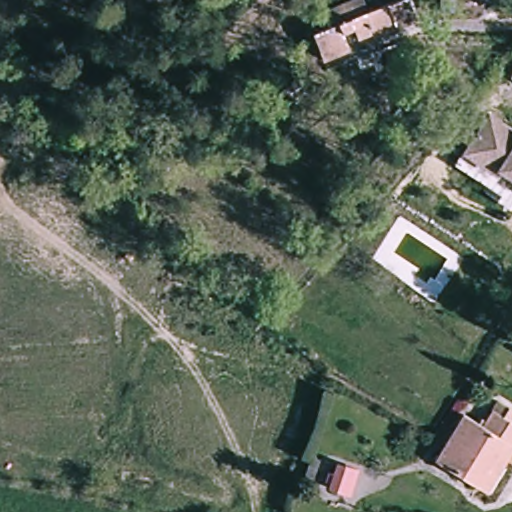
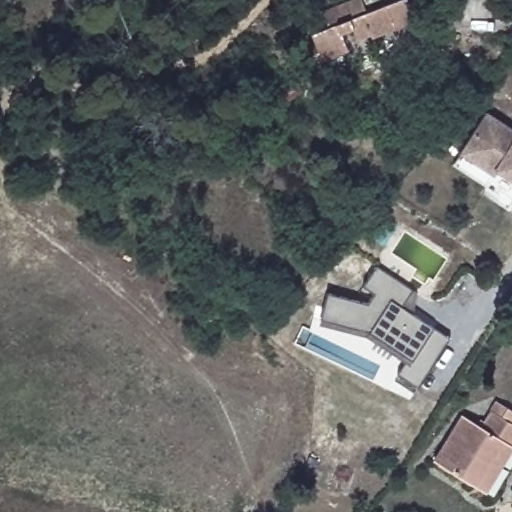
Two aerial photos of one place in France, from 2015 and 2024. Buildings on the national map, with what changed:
unchanged [(321,41),(313,28),(345,9),(353,22),(389,2),(405,29),(365,51),(362,47),(345,56),(340,46),(330,52),(338,67),(318,78),(302,53),(321,41)]
unchanged [(512,204),(510,207),(497,198),(501,192),(457,160),(492,113),(512,127),(512,204)]
new [(417,387),(397,374),(404,362),(365,337),(320,325),(328,293),(367,303),(373,294),(362,287),(375,267),(418,292),(413,315),(433,327),(450,338),(417,387)]
unchanged [(460,414),(481,424),(496,400),(512,407),(512,444),(511,446),(485,488),(475,483),(432,457),(460,414)]
unchanged [(340,470),(344,465),(356,474),(343,495),(330,486),(335,479),(327,474),(334,466),(340,470)]

